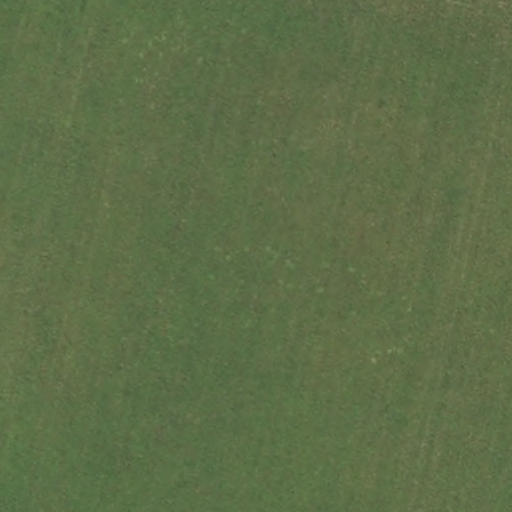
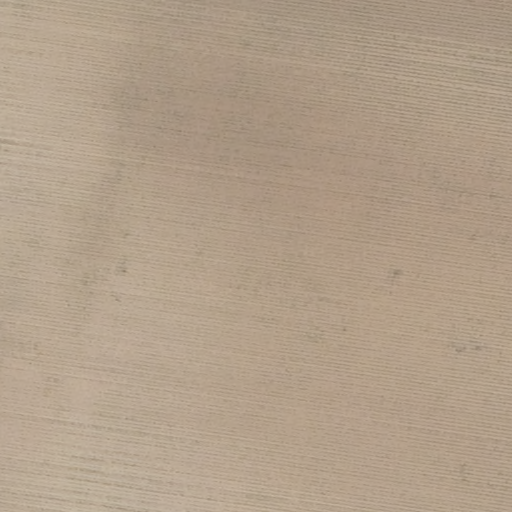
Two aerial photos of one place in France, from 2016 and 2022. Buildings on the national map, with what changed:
[]

